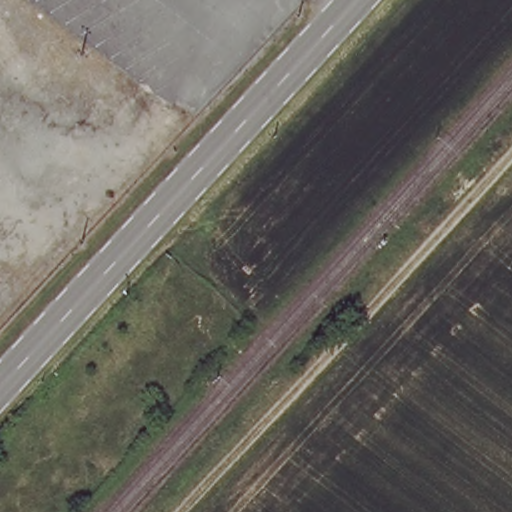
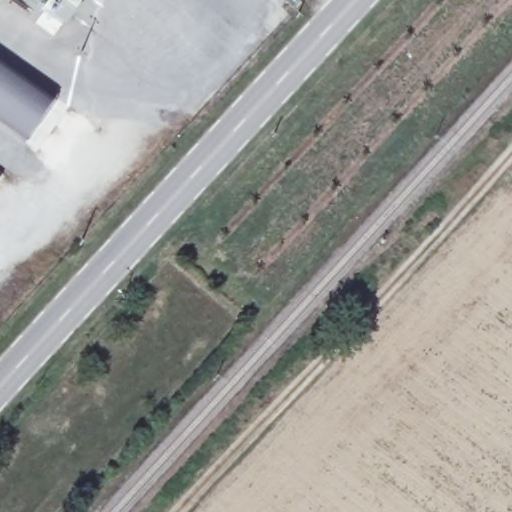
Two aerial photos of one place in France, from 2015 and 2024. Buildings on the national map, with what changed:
new [(60,25),(26,0),(78,0),(60,25)]
new [(0,124),(0,62),(53,99),(23,140),(0,124)]
new [(0,174),(1,175),(0,176),(0,174)]

